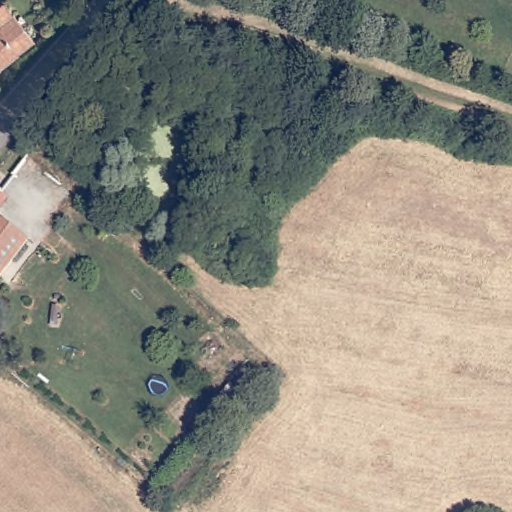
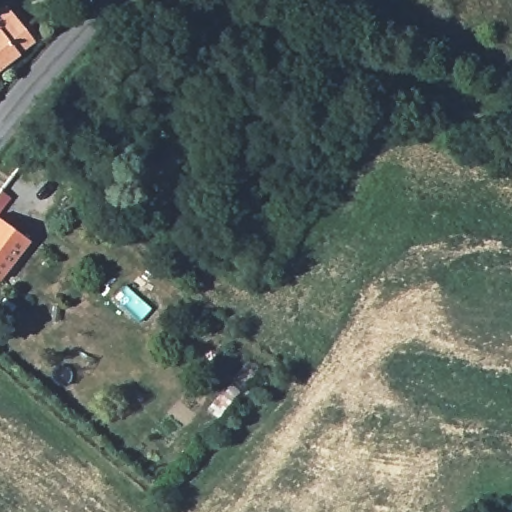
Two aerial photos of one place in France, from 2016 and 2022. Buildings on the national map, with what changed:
unchanged [(34,28),(15,43),(0,55),(0,15),(16,4),(34,28)]
unchanged [(0,268),(0,218),(25,241),(0,268)]

